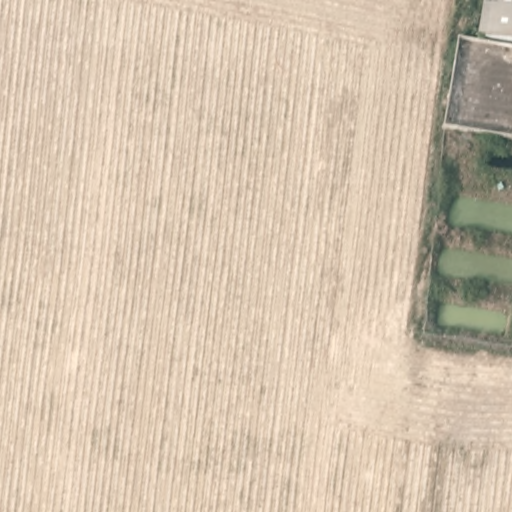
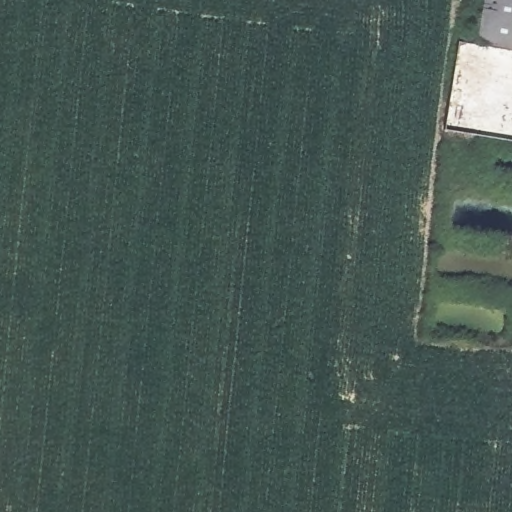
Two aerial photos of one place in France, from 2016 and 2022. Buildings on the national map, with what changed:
unchanged [(494,0),(512,0),(512,40),(488,36),(494,0)]

